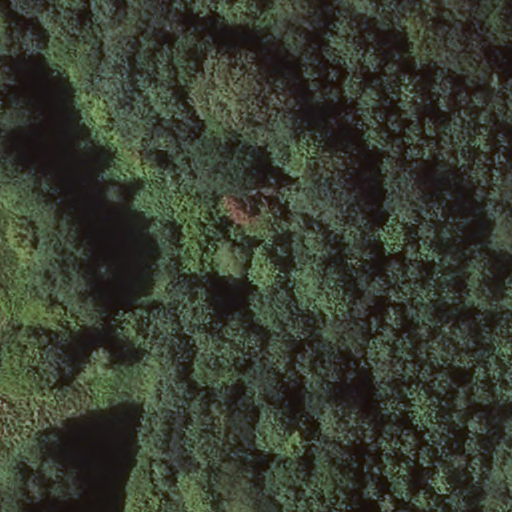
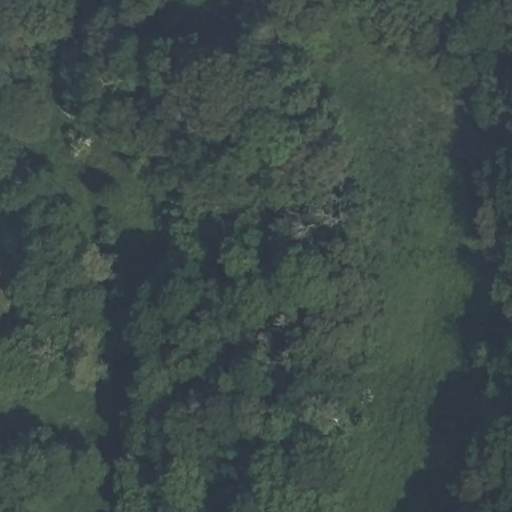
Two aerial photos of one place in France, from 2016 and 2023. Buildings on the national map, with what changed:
unchanged [(512,258),(492,258),(493,241),(512,241),(512,258)]

